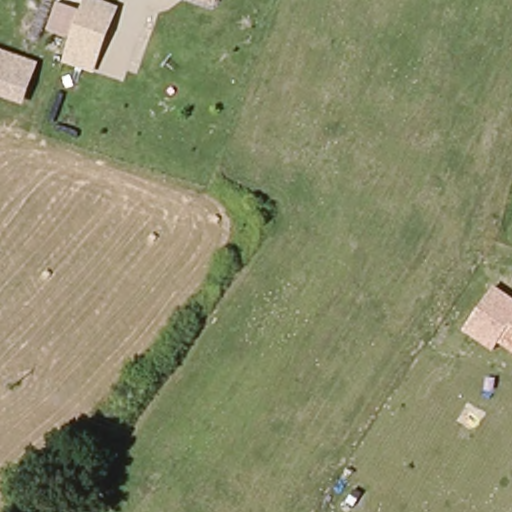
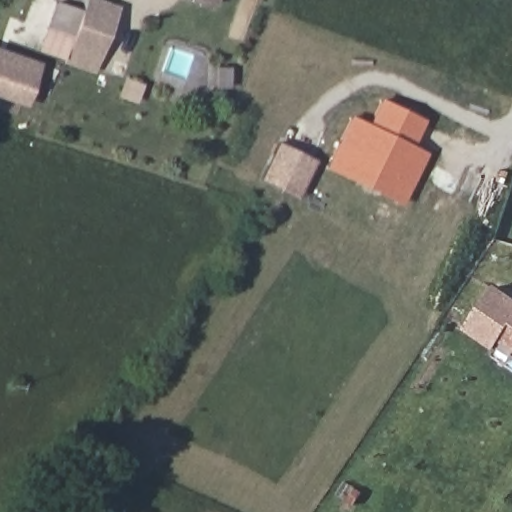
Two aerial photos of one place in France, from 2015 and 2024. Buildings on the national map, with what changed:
unchanged [(61,61),(69,37),(47,30),(58,1),(82,10),(85,0),(105,0),(121,6),(97,74),(61,61)]
unchanged [(26,105),(0,97),(0,48),(39,61),(26,105)]
new [(352,116),(371,126),(384,99),(425,119),(412,146),(425,154),(401,206),(326,169),(352,116)]
new [(316,160),(297,199),(258,179),(277,141),(316,160)]
unchanged [(493,350),(463,330),(493,286),(512,298),(512,354),(497,344),(493,350)]

